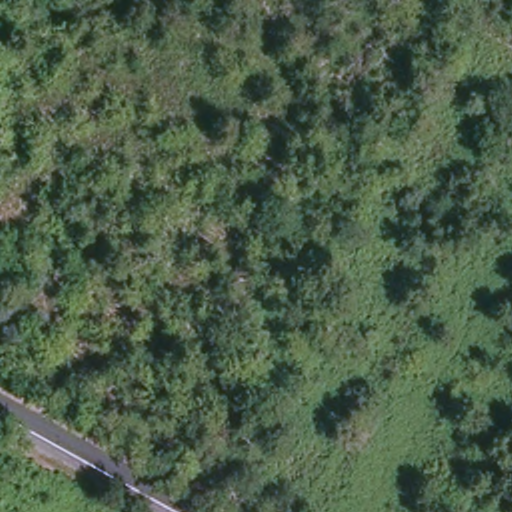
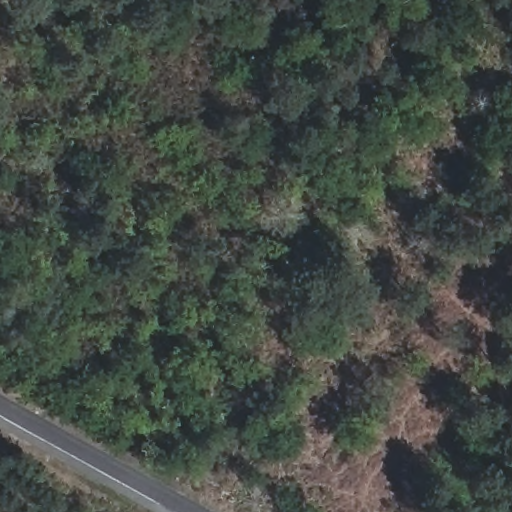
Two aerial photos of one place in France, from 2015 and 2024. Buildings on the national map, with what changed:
[]

